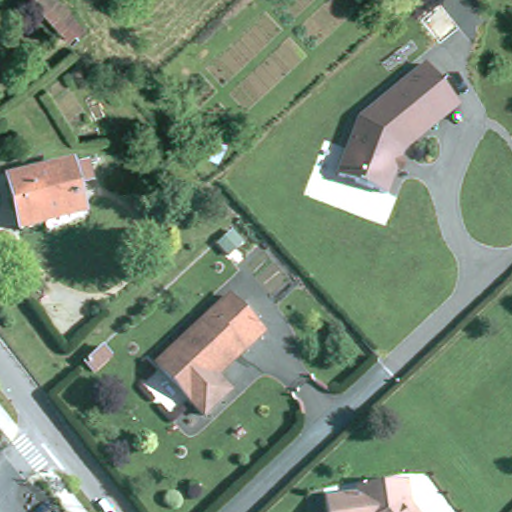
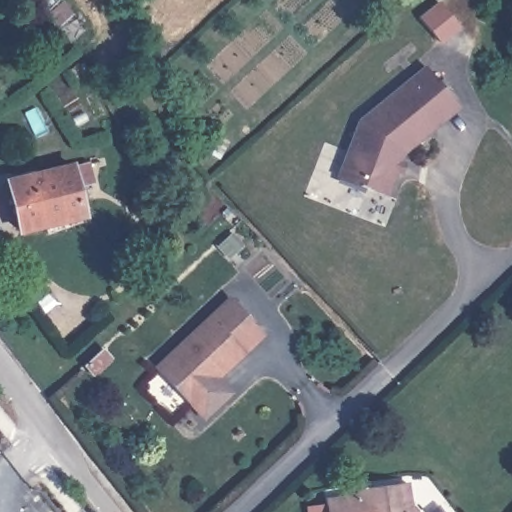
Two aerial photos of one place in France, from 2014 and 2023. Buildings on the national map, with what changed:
unchanged [(32,0),(57,0),(86,32),(73,44),(32,0)]
unchanged [(397,173),(391,171),(382,196),(333,177),(355,120),(421,66),(448,99),(454,106),(426,130),(398,152),(395,161),(400,163),(397,173)]
unchanged [(222,155),(207,146),(216,131),(230,140),(222,155)]
unchanged [(24,236),(12,181),(77,166),(78,171),(96,167),(100,185),(82,189),(90,221),(24,236)]
unchanged [(264,335),(244,354),(241,351),(209,380),(226,399),(205,418),(191,404),(158,368),(232,299),(264,335)]
unchanged [(107,349),(115,358),(99,374),(90,365),(107,349)]
unchanged [(343,505),(345,502),(365,500),(365,493),(385,490),(408,487),(411,512),(328,512),(328,507),(343,505)]

